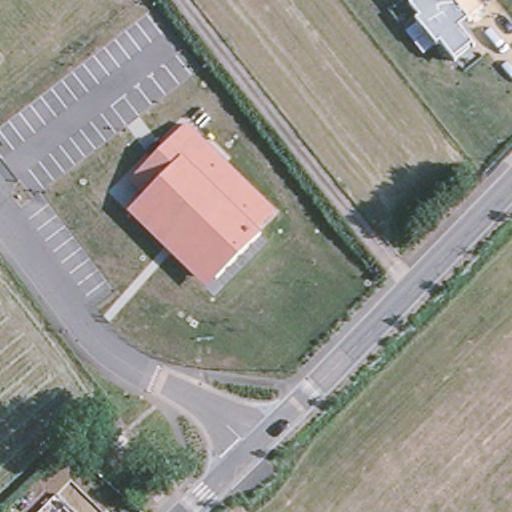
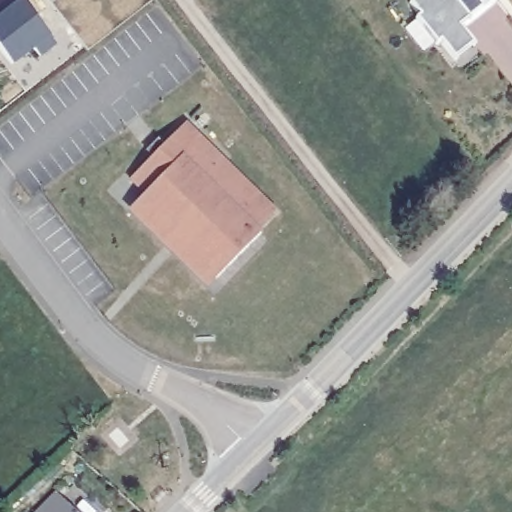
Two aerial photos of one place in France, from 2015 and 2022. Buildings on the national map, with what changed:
new [(40,58),(35,49),(12,65),(0,49),(0,17),(22,0),(24,0),(59,44),(40,58)]
unchanged [(460,26),(474,43),(455,61),(440,42),(437,45),(413,20),(417,16),(408,3),(412,0),(478,0),(484,7),(478,12),(470,17),(460,26)]
unchanged [(275,211),(257,228),(260,232),(207,288),(127,211),(144,196),(129,179),(185,123),(275,211)]
new [(35,512),(55,492),(76,512),(35,512)]

